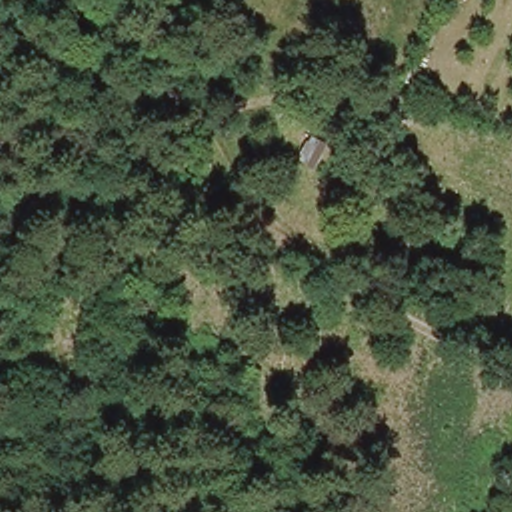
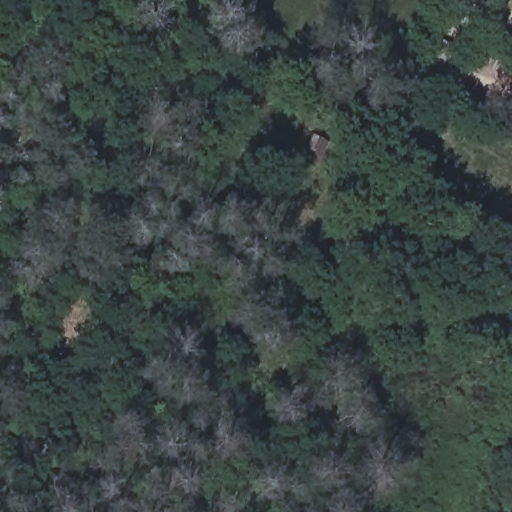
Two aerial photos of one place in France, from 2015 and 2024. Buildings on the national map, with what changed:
unchanged [(317,181),(301,174),(314,147),(330,154),(317,181)]
unchanged [(411,221),(415,224),(412,234),(425,239),(418,256),(393,249),(407,208),(414,210),(411,221)]

